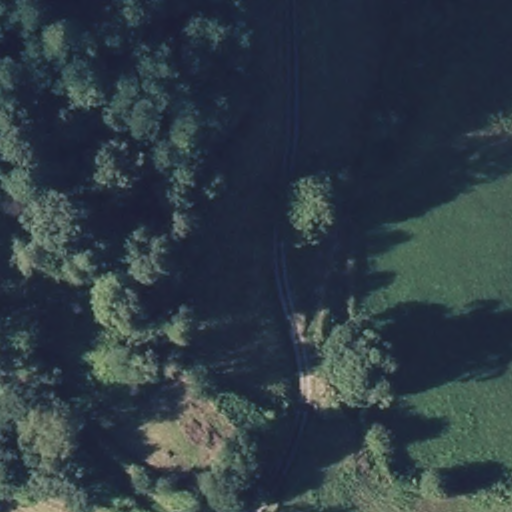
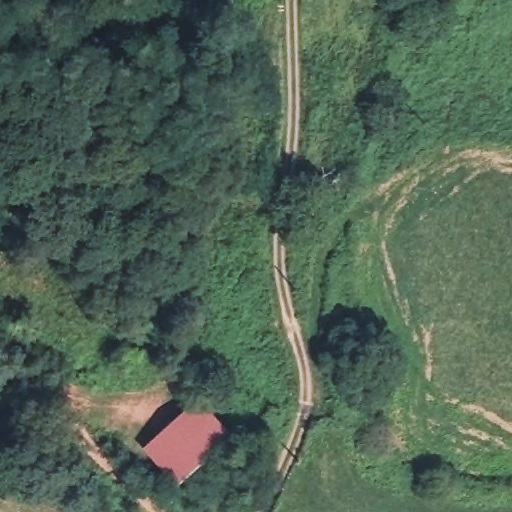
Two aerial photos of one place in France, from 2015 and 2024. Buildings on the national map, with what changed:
new [(200,396),(235,434),(180,486),(144,447),(200,396)]

